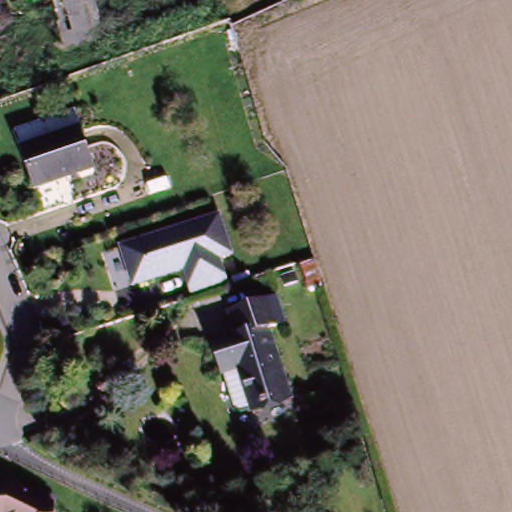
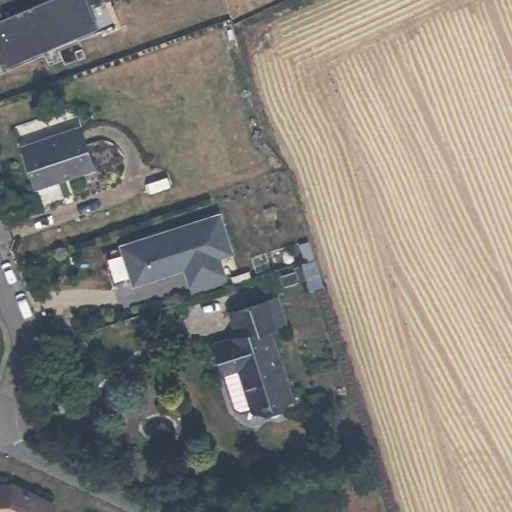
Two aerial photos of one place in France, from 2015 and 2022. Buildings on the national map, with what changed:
new [(0,49),(0,11),(3,17),(43,0),(83,0),(94,24),(5,61),(0,49)]
demolished [(103,35),(64,48),(52,0),(95,0),(103,35)]
unchanged [(36,182),(21,137),(81,118),(96,163),(36,182)]
unchanged [(221,213),(234,255),(221,258),(229,281),(191,293),(184,274),(134,288),(122,244),(221,213)]
unchanged [(316,297),(307,270),(325,272),(332,294),(334,299),(316,297)]
unchanged [(237,337),(230,312),(278,297),(287,325),(270,330),(292,401),(257,411),(235,413),(224,377),(214,345),(221,342),(237,337)]
unchanged [(56,499),(49,512),(0,512),(0,481),(16,480),(56,499)]

